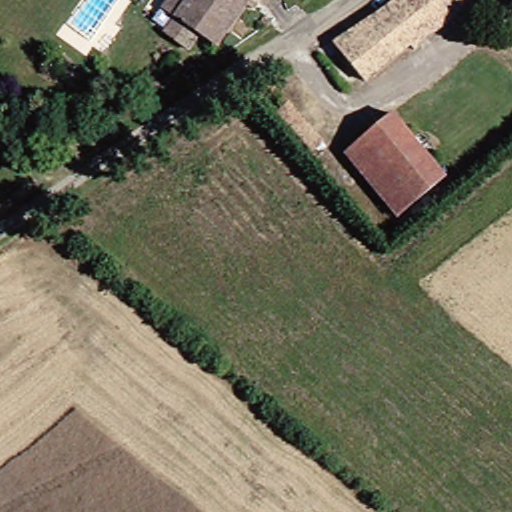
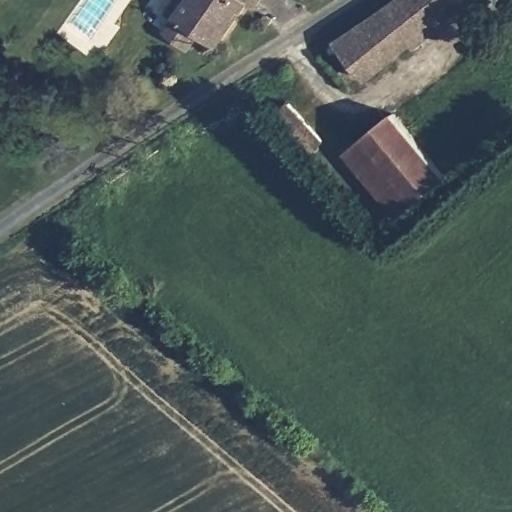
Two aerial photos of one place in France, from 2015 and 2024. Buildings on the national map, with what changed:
unchanged [(172,4),(175,0),(249,0),(222,42),(207,31),(195,47),(174,31),(185,13),(172,4)]
unchanged [(253,0),(263,0),(260,4),(253,0)]
unchanged [(466,0),(467,0),(476,12),(422,51),(418,48),(387,10),(400,0),(410,0),(425,25),(466,0)]
unchanged [(410,0),(466,0),(425,25),(410,0)]
unchanged [(467,0),(492,0),(476,12),(467,0)]
unchanged [(418,48),(373,79),(340,39),(387,10),(418,48)]
unchanged [(285,109),(300,100),(330,139),(315,150),(285,109)]
unchanged [(451,178),(401,217),(350,155),(399,116),(446,171),(451,178)]

